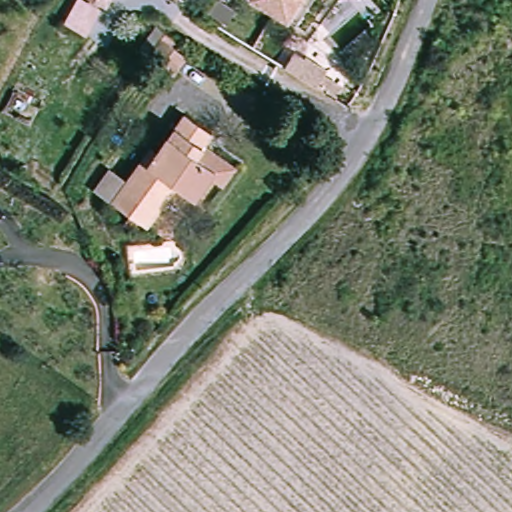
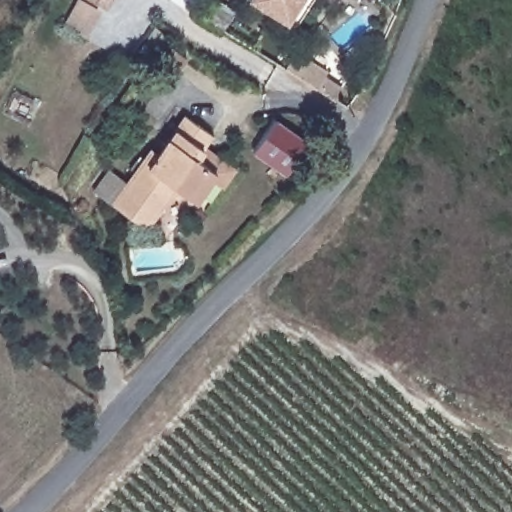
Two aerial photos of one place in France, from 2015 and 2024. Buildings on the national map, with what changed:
unchanged [(93,0),(105,0),(102,5),(93,0)]
unchanged [(255,0),(298,0),(284,20),(255,0)]
unchanged [(175,80),(163,70),(147,60),(143,58),(157,36),(174,46),(170,52),(174,54),(187,63),(175,80)]
unchanged [(308,55),(330,67),(320,85),(298,72),(308,55)]
unchanged [(201,144),(195,152),(213,165),(193,194),(175,181),(143,224),(110,201),(148,147),(155,152),(184,111),(210,130),(201,144)]
new [(252,150),(274,119),(308,142),(285,174),(252,150)]

